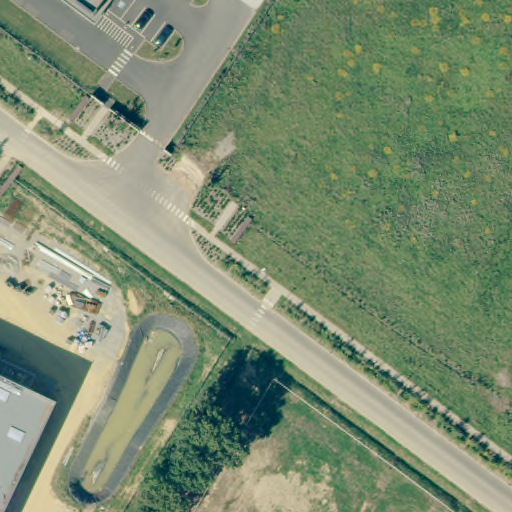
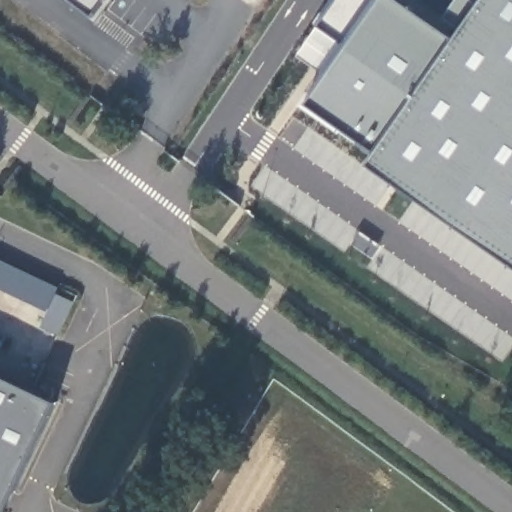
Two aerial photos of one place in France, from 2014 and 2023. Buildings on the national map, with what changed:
unchanged [(71,0),(104,0),(92,15),(71,0)]
new [(374,150),(307,104),(346,46),(315,26),(334,0),(399,0),(440,29),(460,0),(512,0),(512,265),(365,164),(374,150)]
new [(58,288),(46,311),(0,290),(0,260),(58,288)]
new [(75,303),(59,335),(42,327),(58,295),(75,303)]
new [(36,375),(29,390),(57,401),(4,512),(0,512),(0,358),(36,375)]

